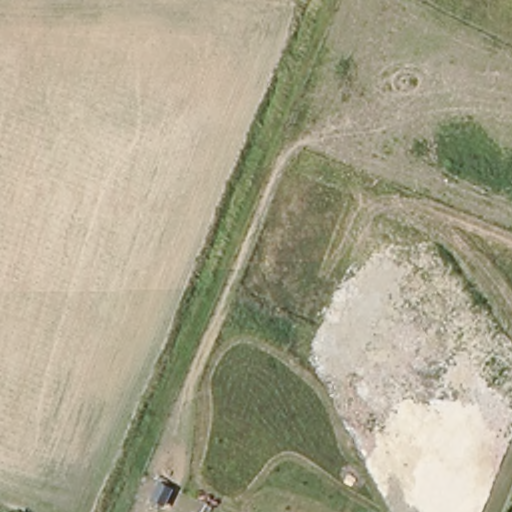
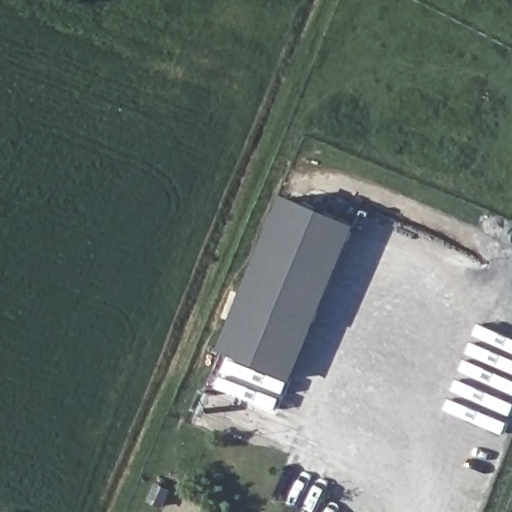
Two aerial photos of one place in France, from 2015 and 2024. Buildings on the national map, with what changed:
new [(222,350),(288,194),(360,225),(294,381),(222,350)]

